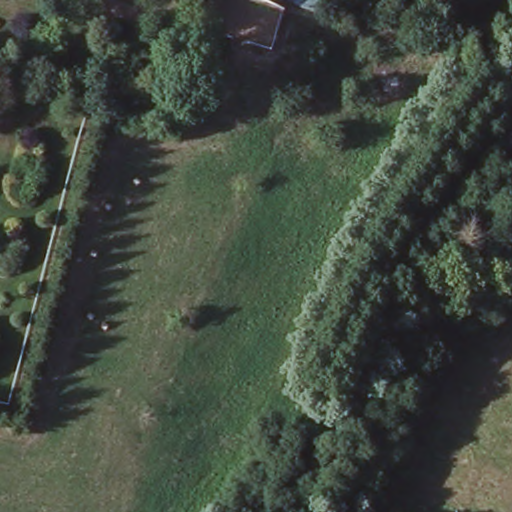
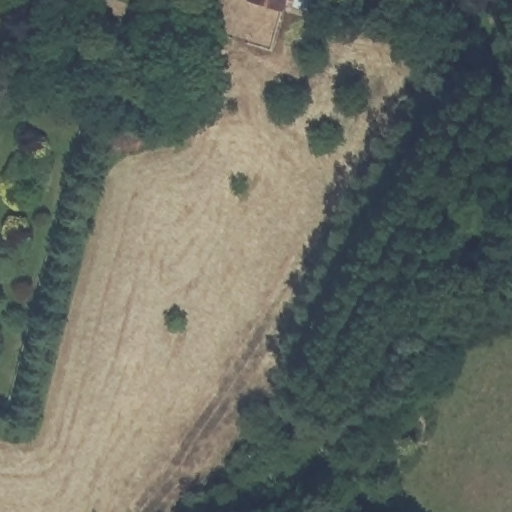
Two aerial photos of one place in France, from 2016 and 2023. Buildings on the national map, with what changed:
unchanged [(273,0),(281,0),(281,3),(273,0)]
unchanged [(301,0),(305,0),(305,1),(301,0)]

